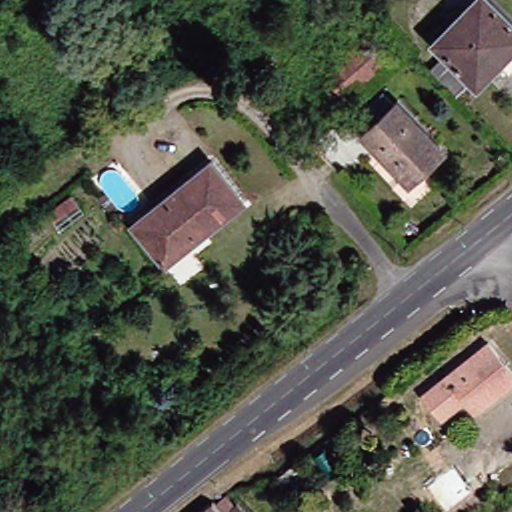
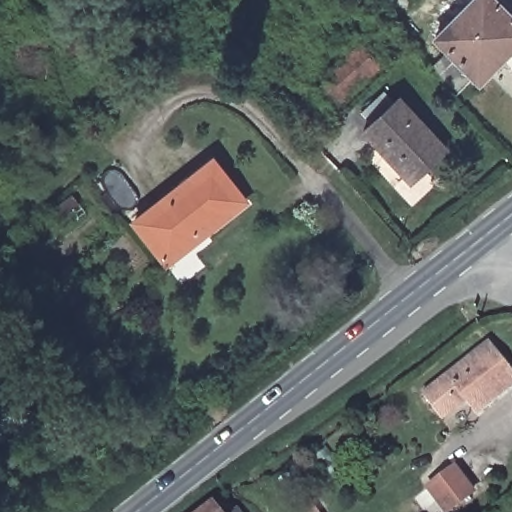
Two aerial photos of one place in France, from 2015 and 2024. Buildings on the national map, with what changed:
unchanged [(428,43),(471,0),(481,0),(512,31),(512,44),(503,53),(471,85),(466,80),(428,43)]
unchanged [(377,58),(319,109),(302,90),(360,39),(377,58)]
unchanged [(401,183),(362,141),(370,133),(360,121),(383,100),(394,111),(397,108),(442,157),(422,175),(407,189),(401,183)]
unchanged [(205,166),(235,205),(197,235),(194,232),(156,262),(127,227),(205,166)]
unchanged [(512,380),(512,382),(469,416),(459,403),(436,422),(415,396),(483,343),(512,380)]
new [(474,492),(452,512),(449,512),(430,491),(455,470),(474,492)]
unchanged [(225,512),(194,512),(211,499),(214,502),(223,495),(232,507),(235,504),(242,512),(227,512),(226,511),(225,512)]

